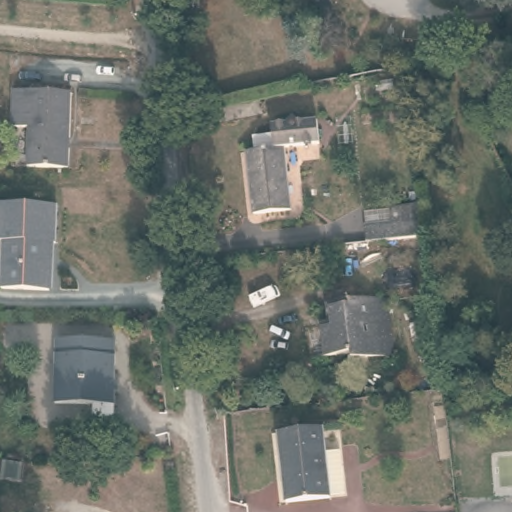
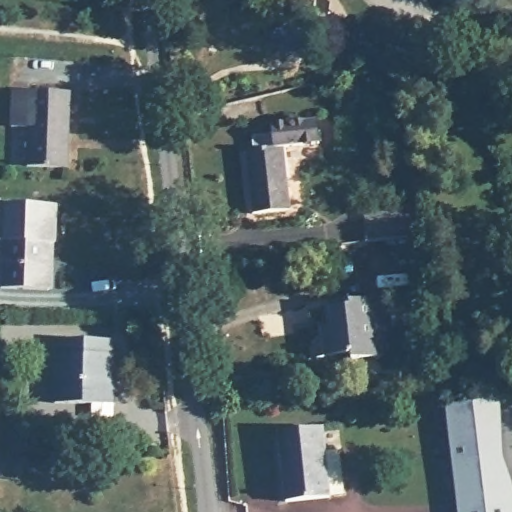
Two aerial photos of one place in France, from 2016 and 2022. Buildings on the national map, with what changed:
unchanged [(13,91),(72,93),(70,136),(67,139),(67,144),(69,149),(69,168),(28,167),(29,128),(12,128),(13,91)]
unchanged [(261,151),(259,136),(280,134),(279,124),(293,123),(299,115),(306,123),(323,121),(326,144),(290,148),(296,210),(259,214),(252,152),(261,151)]
unchanged [(57,205),(56,244),(51,243),(49,290),(2,288),(4,241),(0,241),(0,203),(57,205)]
unchanged [(366,227),(394,224),(392,209),(424,206),(427,236),(367,243),(366,227)]
unchanged [(331,327),(328,304),(388,297),(396,355),(353,359),(353,354),(327,357),(323,328),(331,327)]
unchanged [(57,339),(116,341),(114,417),(94,417),(94,404),(56,403),(57,339)]
new [(444,406),(499,400),(501,458),(512,487),(512,512),(457,512),(444,406)]
unchanged [(341,494),(327,496),(327,498),(282,503),(274,433),(319,429),(322,453),(337,452),(341,494)]

